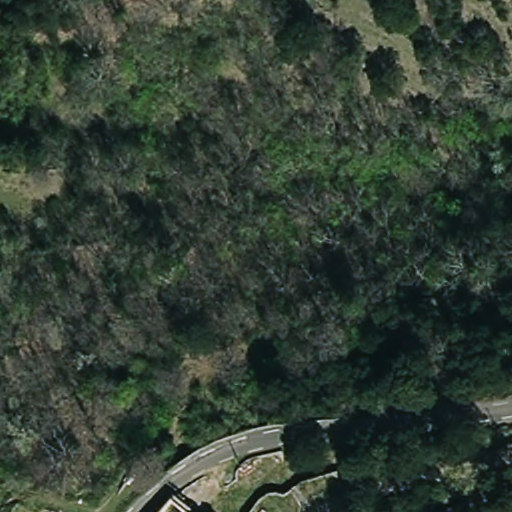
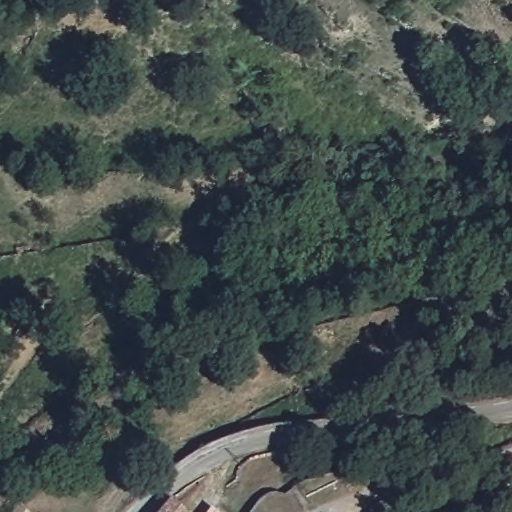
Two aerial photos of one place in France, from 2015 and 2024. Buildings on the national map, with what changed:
unchanged [(169,508),(173,512),(164,512),(169,508)]

